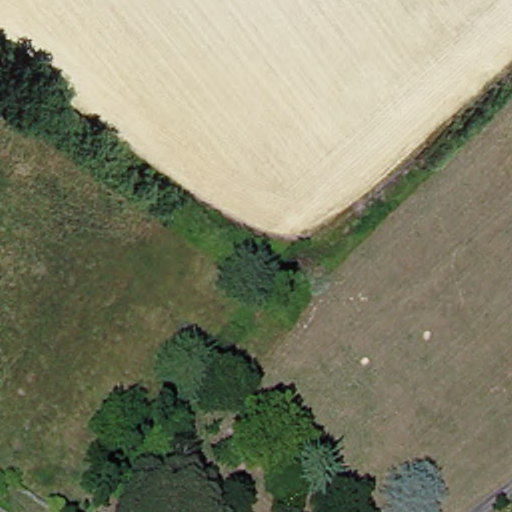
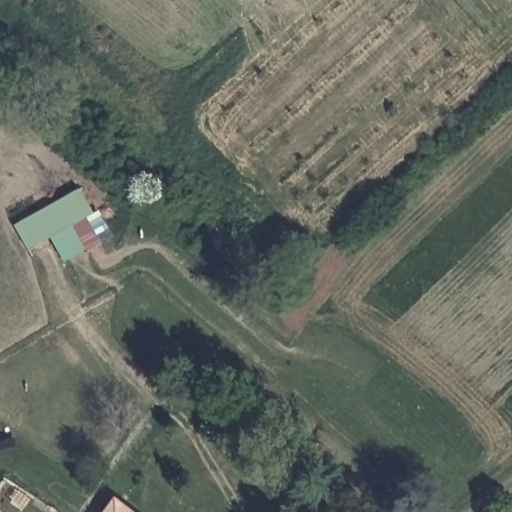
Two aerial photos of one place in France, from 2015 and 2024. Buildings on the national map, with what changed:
new [(53,237),(29,249),(15,222),(83,188),(113,239),(65,262),(53,237)]
unchanged [(115,500),(130,512),(106,512),(115,500)]

